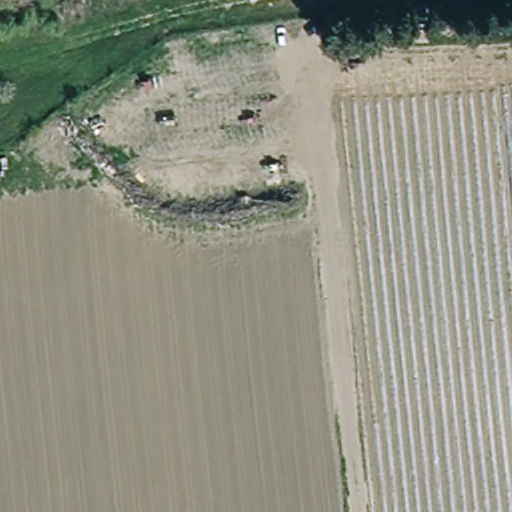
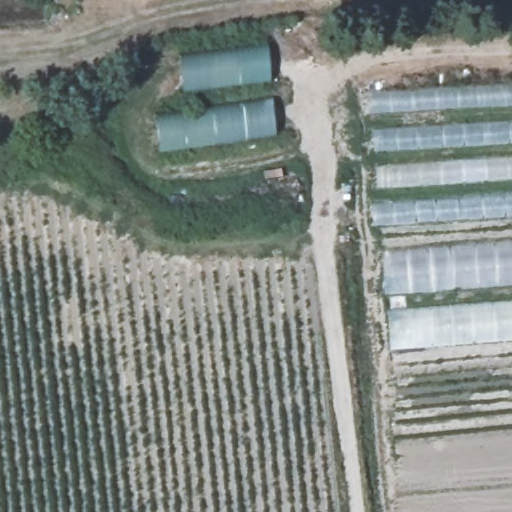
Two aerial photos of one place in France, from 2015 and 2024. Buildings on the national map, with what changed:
new [(180,91),(176,55),(265,45),(269,83),(180,91)]
new [(366,90),(512,83),(512,215),(370,225),(366,90)]
new [(274,135),(156,152),(150,115),(270,100),(274,135)]
new [(386,295),(382,254),(512,243),(512,285),(386,295)]
new [(386,308),(512,298),(512,339),(389,348),(386,308)]

